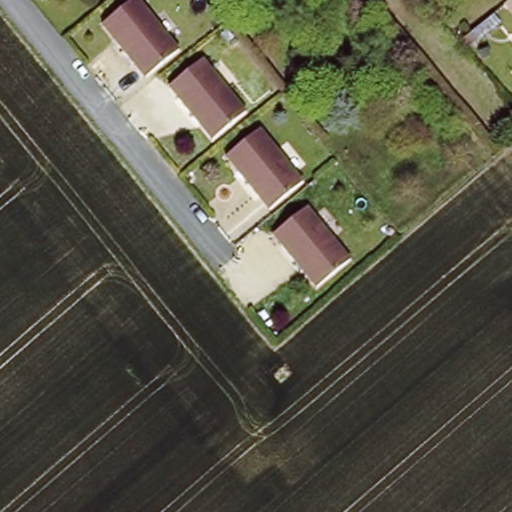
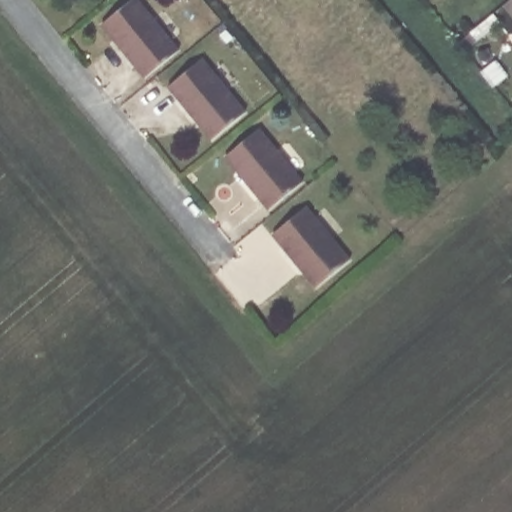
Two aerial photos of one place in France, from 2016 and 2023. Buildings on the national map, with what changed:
unchanged [(125,0),(142,0),(179,46),(146,73),(102,20),(125,0)]
unchanged [(512,1),(512,18),(503,8),(512,1)]
unchanged [(202,55),(246,109),(213,135),(169,82),(202,55)]
unchanged [(303,179),(270,206),(227,152),(260,125),(303,179)]
unchanged [(274,230),(307,204),(351,257),(318,285),(274,230)]

